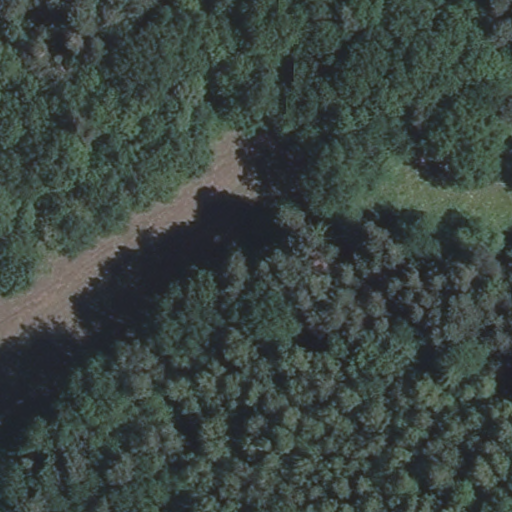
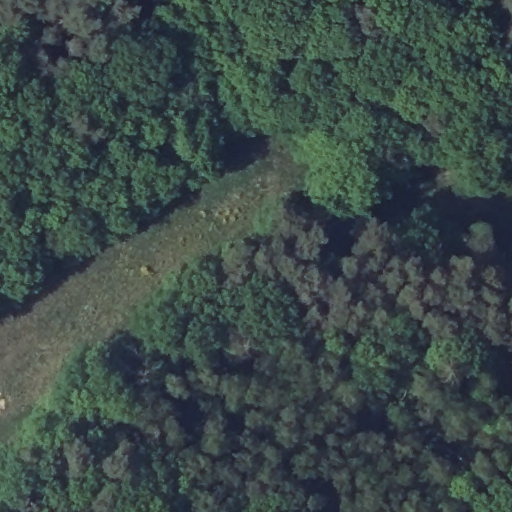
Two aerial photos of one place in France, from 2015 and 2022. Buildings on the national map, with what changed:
unchanged [(0,486),(0,472),(8,478),(0,486)]

